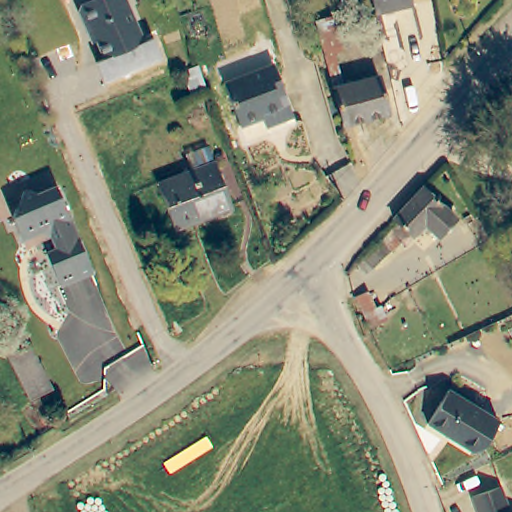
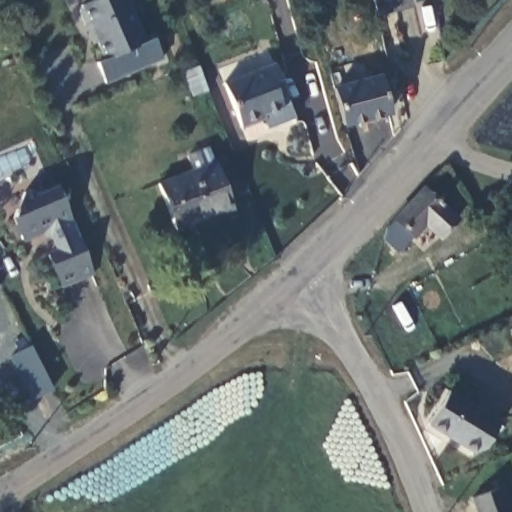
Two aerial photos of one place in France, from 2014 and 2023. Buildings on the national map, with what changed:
unchanged [(93,0),(125,0),(143,41),(153,36),(162,60),(104,84),(95,64),(104,60),(96,43),(92,44),(77,12),(80,5),(93,0)]
unchanged [(371,28),(364,0),(403,0),(408,19),(371,28)]
unchanged [(340,132),(330,89),(318,62),(311,21),(334,18),(344,53),(335,55),(345,80),(376,76),(392,118),(340,132)]
unchanged [(287,117),(238,135),(216,75),(265,56),(287,117)]
unchanged [(197,224),(173,234),(155,188),(189,174),(185,163),(207,154),(211,166),(227,208),(195,220),(197,224)]
unchanged [(52,186),(90,274),(57,287),(45,255),(56,250),(48,232),(42,229),(18,239),(9,219),(21,192),(27,190),(34,194),(52,186)]
unchanged [(424,231),(411,244),(403,251),(390,255),(366,273),(354,259),(391,223),(425,189),(459,219),(438,242),(424,231)]
unchanged [(52,387),(31,398),(7,356),(30,344),(52,387)]
unchanged [(500,419),(482,445),(473,449),(427,420),(450,387),(500,419)]
unchanged [(476,499),(506,490),(512,512),(480,512),(476,499)]

